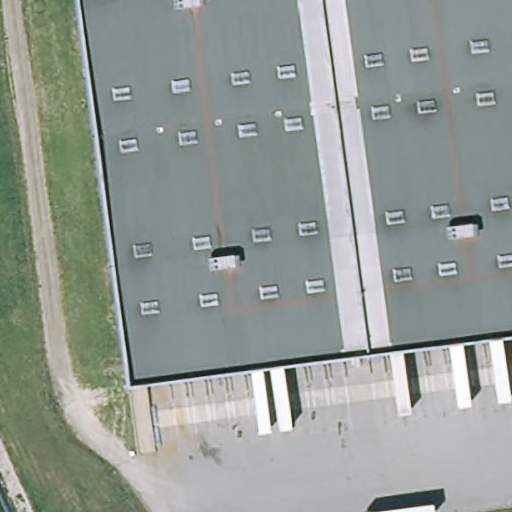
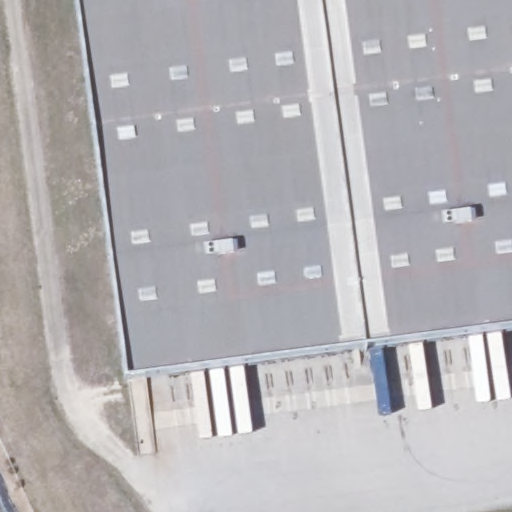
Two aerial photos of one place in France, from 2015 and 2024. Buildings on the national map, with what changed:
unchanged [(125,380),(75,0),(512,0),(512,329),(125,380)]

